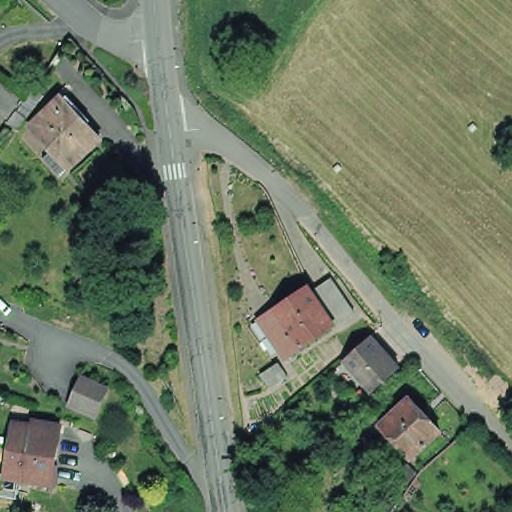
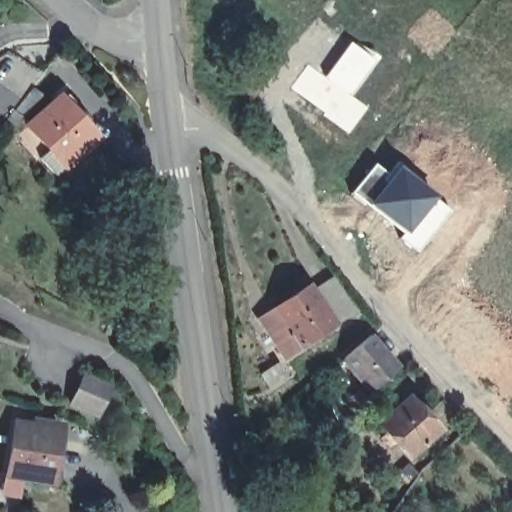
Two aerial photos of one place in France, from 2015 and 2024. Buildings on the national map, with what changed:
new [(350,40),(378,57),(351,97),(324,76),(350,40)]
new [(309,65),(324,76),(351,97),(349,102),(345,99),(329,117),(305,97),(306,90),(308,85),(296,82),(309,65)]
unchanged [(8,129),(14,120),(18,115),(36,91),(46,100),(29,122),(25,120),(14,133),(8,129)]
unchanged [(46,165),(56,155),(33,131),(63,101),(103,142),(73,172),(63,182),(46,165)]
new [(351,192),(374,162),(387,172),(396,163),(437,198),(449,209),(416,251),(399,237),(402,234),(351,192)]
unchanged [(318,277),(325,288),(337,280),(351,300),(338,308),(344,316),(310,340),(296,350),(269,311),(284,300),(318,277)]
unchanged [(399,365),(372,388),(346,359),(372,336),(399,365)]
unchanged [(271,367),(288,355),(297,368),(279,380),(271,367)]
unchanged [(74,400),(82,384),(87,373),(113,386),(108,396),(101,412),(74,400)]
unchanged [(380,417),(411,391),(440,425),(409,451),(392,431),(387,436),(381,430),(387,426),(380,417)]
unchanged [(56,493),(47,490),(43,485),(6,478),(14,426),(35,430),(36,422),(61,426),(60,433),(56,456),(60,462),(61,477),(56,493)]

